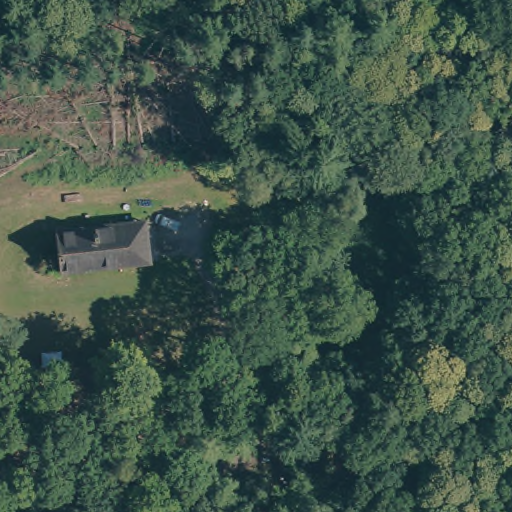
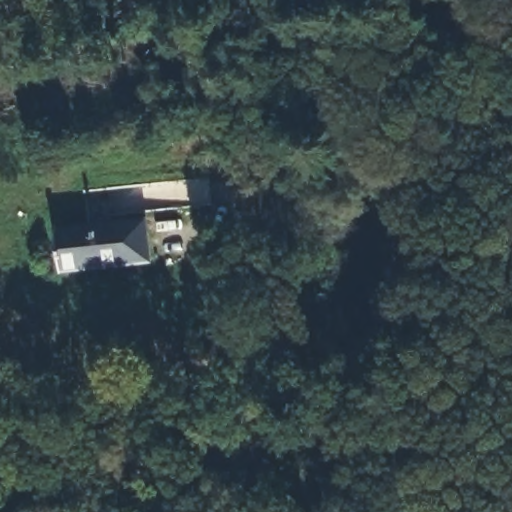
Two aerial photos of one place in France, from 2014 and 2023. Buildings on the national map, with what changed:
unchanged [(59,230),(125,223),(148,220),(152,261),(130,263),(64,271),(59,230)]

